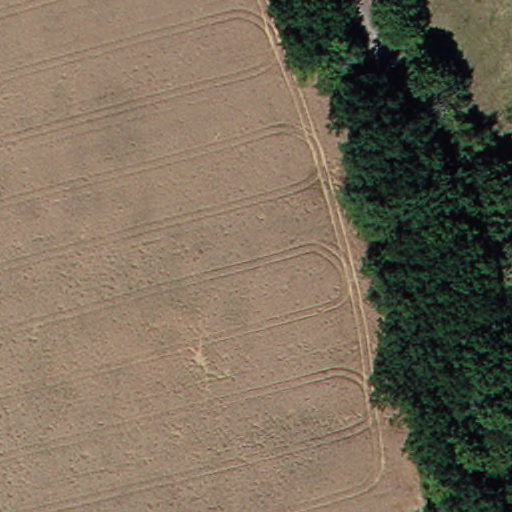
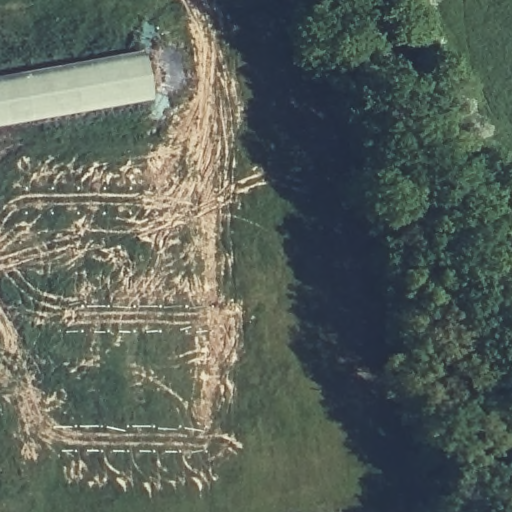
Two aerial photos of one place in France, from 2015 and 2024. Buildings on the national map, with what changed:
new [(0,126),(0,78),(140,51),(147,99),(0,126)]

